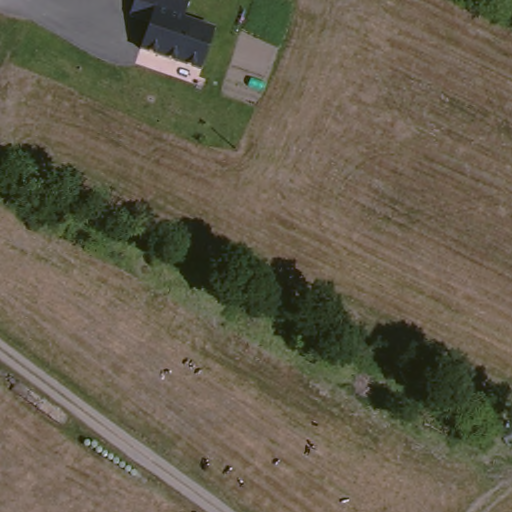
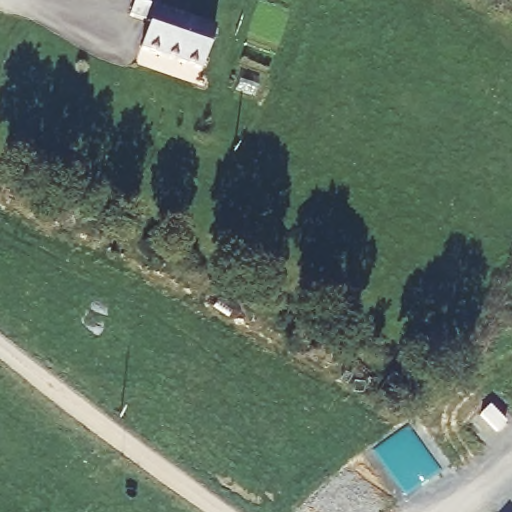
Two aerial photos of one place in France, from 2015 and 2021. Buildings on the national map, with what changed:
unchanged [(201,65),(142,48),(150,22),(131,14),(136,0),(188,0),(189,0),(186,14),(216,28),(201,65)]

